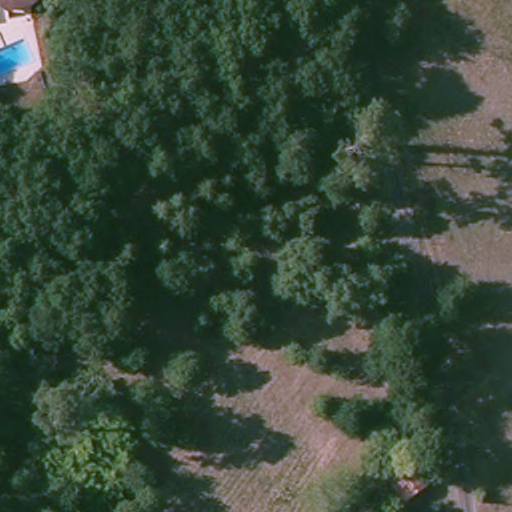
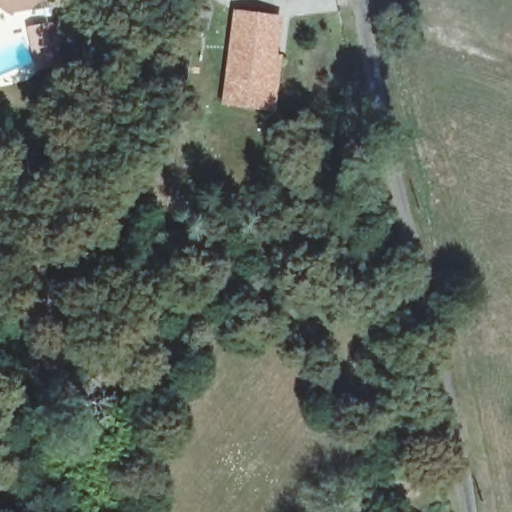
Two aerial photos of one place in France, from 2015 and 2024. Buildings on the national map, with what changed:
unchanged [(6,7),(2,0),(26,0),(6,7)]
new [(275,21),(277,60),(283,60),(286,111),(236,114),(232,23),(275,21)]

